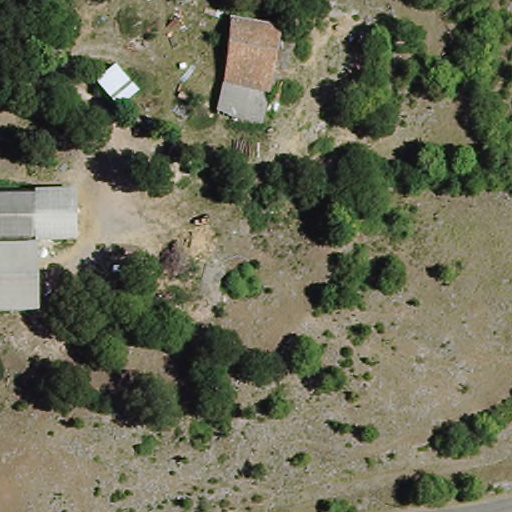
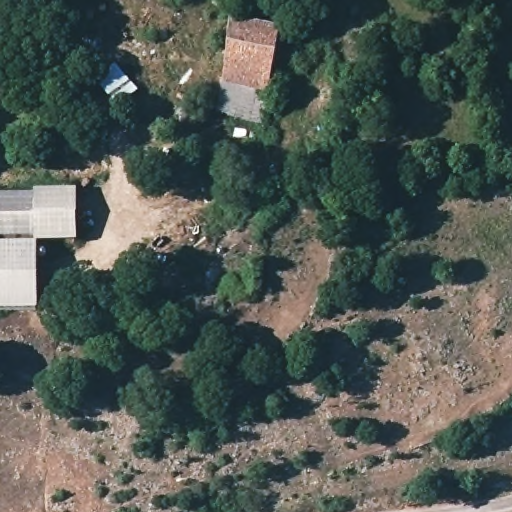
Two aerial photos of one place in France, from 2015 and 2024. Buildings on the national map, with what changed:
unchanged [(218,95),(223,30),(228,30),(273,41),(264,106),(218,95)]
unchanged [(0,190),(74,187),(74,242),(35,242),(35,310),(0,309),(0,190)]

